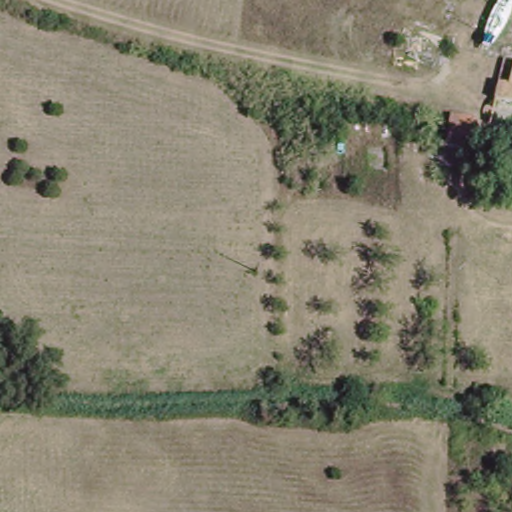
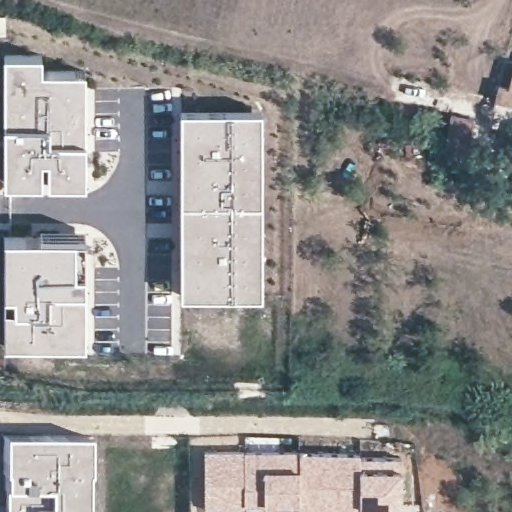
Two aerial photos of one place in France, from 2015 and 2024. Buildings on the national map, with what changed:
new [(2,182),(2,95),(2,55),(12,55),(40,55),(40,71),(83,71),(84,169),(84,181),(68,181),(47,182),(40,182),(2,182)]
unchanged [(508,58),(512,59),(512,97),(502,94),(508,58)]
unchanged [(455,110),(478,115),(470,165),(455,162),(458,143),(452,142),(455,110)]
new [(182,115),(263,115),(264,300),(182,300),(182,115)]
new [(3,335),(3,307),(3,293),(3,264),(3,236),(13,236),(83,236),(85,345),(30,345),(3,345),(3,335)]
new [(86,446),(86,473),(85,473),(85,486),(85,512),(3,512),(3,473),(2,473),(2,447),(2,436),(27,436),(62,435),(86,435),(86,446)]
new [(232,510),(232,512),(204,512),(203,448),(299,448),(298,505),(265,504),(265,512),(244,512),(244,510),(232,510)]
new [(299,448),(362,451),(361,454),(387,458),(387,462),(403,464),(402,505),(380,505),(379,512),(299,512),(298,505),(299,448)]

